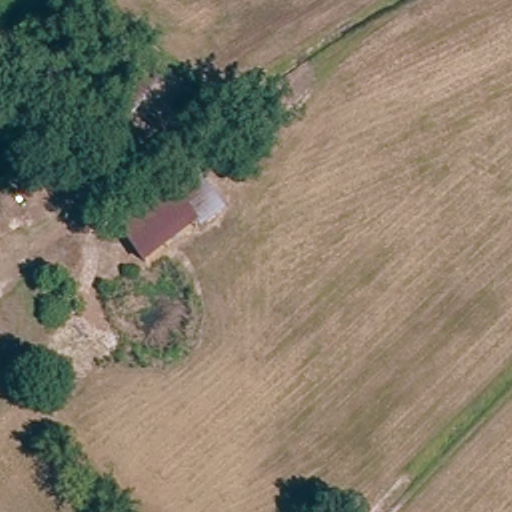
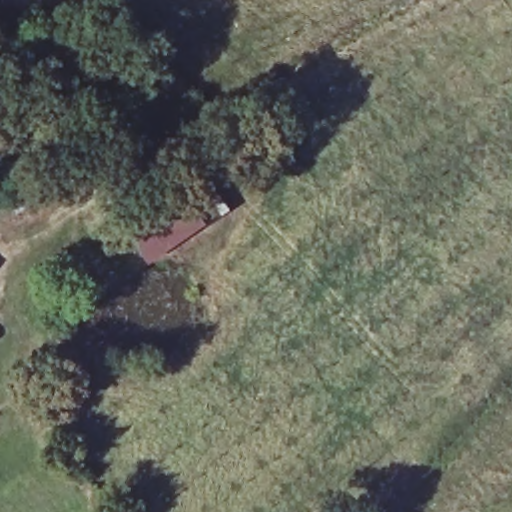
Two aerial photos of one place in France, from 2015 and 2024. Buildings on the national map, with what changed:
unchanged [(226,206),(208,217),(187,182),(204,171),(226,206)]
unchanged [(203,220),(149,254),(125,215),(179,181),(203,220)]

